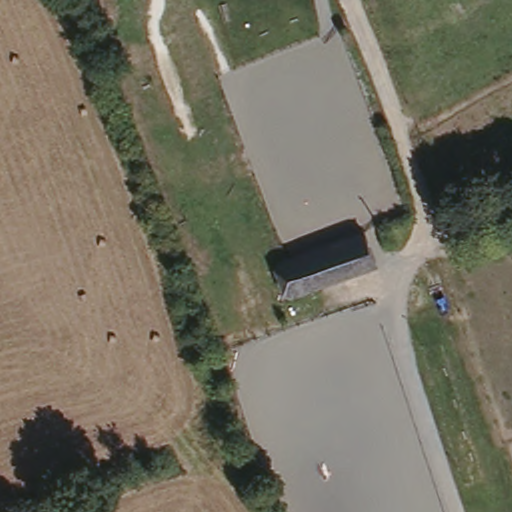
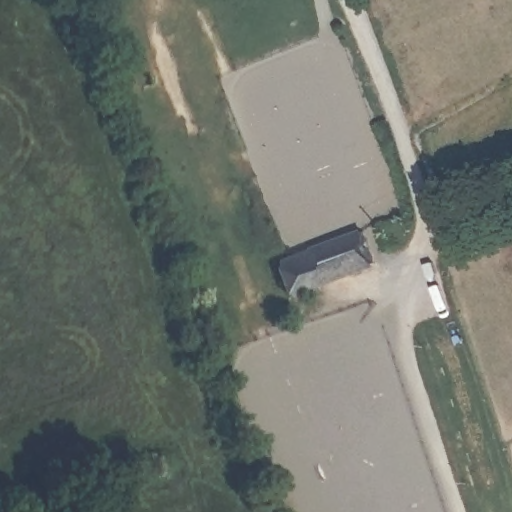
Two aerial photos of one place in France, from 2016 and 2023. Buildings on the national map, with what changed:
unchanged [(281,257),(359,226),(373,259),(293,290),(281,257)]

